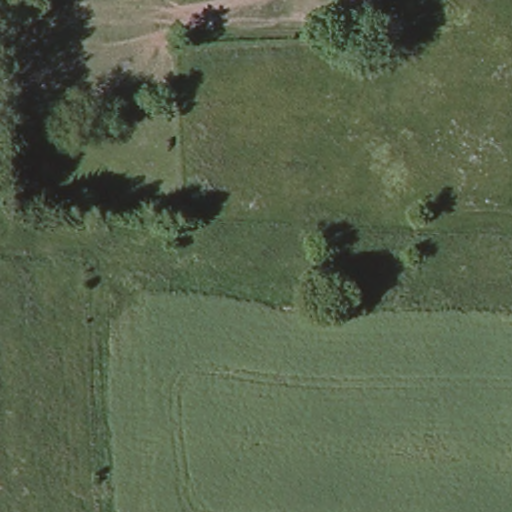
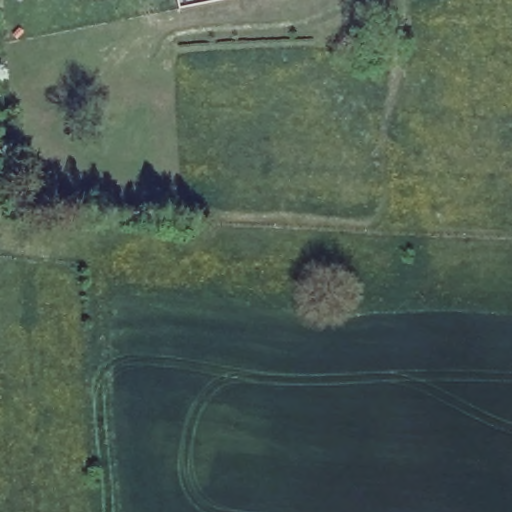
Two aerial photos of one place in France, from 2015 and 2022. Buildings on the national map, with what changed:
[]

